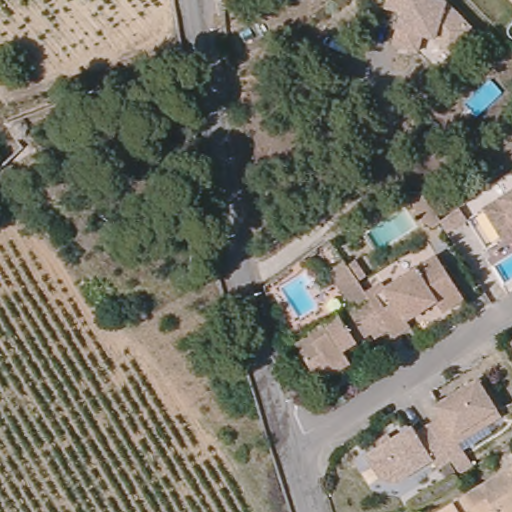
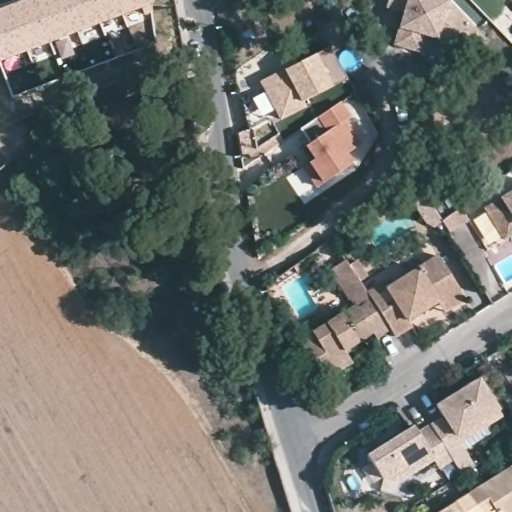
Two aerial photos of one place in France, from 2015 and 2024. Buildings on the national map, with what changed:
new [(156,12),(150,15),(147,7),(0,62),(0,14),(36,0),(154,0),(155,4),(156,12)]
unchanged [(400,22),(405,6),(388,1),(388,0),(452,0),(477,26),(453,49),(437,33),(424,29),(419,48),(395,41),(400,22)]
new [(286,72),(289,76),(301,69),(299,65),(330,46),(349,79),(304,104),(307,108),(282,122),(262,86),(286,72)]
new [(310,144),(300,130),(339,103),(350,118),(343,122),(360,146),(345,156),(352,165),(317,189),(303,167),(310,164),(301,150),(306,147),(310,144)]
unchanged [(501,230),(484,204),(512,186),(512,229),(503,235),(501,230)]
new [(468,220),(448,234),(441,222),(434,228),(428,223),(411,200),(421,193),(441,221),(460,207),(468,220)]
unchanged [(443,311),(439,304),(437,300),(430,305),(407,319),(410,325),(394,335),(389,328),(366,291),(383,281),(387,286),(438,255),(460,291),(464,297),(443,311)]
unchanged [(303,257),(307,264),(297,271),(293,265),(303,257)]
unchanged [(314,370),(298,342),(313,333),(312,331),(355,304),(351,297),(348,298),(343,290),(331,270),(345,260),(359,279),(366,291),(389,328),(376,337),(373,331),(343,349),(348,357),(352,363),(322,382),(314,370)]
unchanged [(462,438),(451,446),(435,421),(447,412),(440,402),(452,393),(462,387),(481,374),(501,405),(505,411),(462,438)]
unchanged [(451,446),(457,455),(442,465),(437,456),(403,478),(386,474),(370,451),(387,440),(394,436),(417,421),(421,426),(433,418),(435,421),(451,446)]
unchanged [(468,496),(512,468),(512,512),(478,512),(468,496)]
unchanged [(468,496),(478,512),(442,512),(468,496)]

